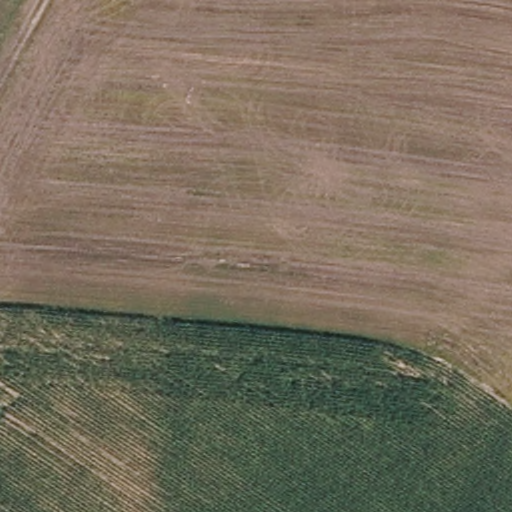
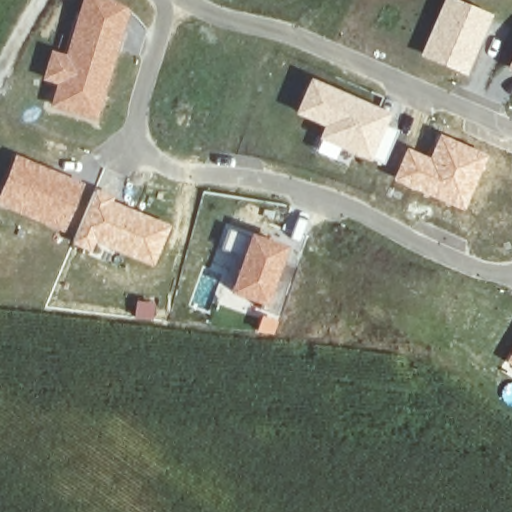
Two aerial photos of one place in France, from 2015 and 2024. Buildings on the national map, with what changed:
new [(110,0),(129,6),(96,121),(50,107),(59,83),(42,80),(47,65),(61,70),(66,58),(83,0),(110,0)]
new [(323,127),(294,114),(309,78),(391,114),(386,125),(398,130),(384,163),(372,158),(370,161),(318,140),(323,127)]
new [(407,148),(429,158),(440,134),(488,155),(465,211),(393,181),(407,148)]
new [(0,191),(14,158),(82,186),(63,232),(0,205),(0,191)]
new [(94,241),(75,238),(95,189),(114,197),(111,203),(164,225),(152,252),(159,255),(154,266),(94,241)]
new [(241,256),(222,250),(230,229),(248,236),(250,234),(287,247),(282,261),(295,265),(278,316),(259,310),(260,305),(228,294),(241,256)]

